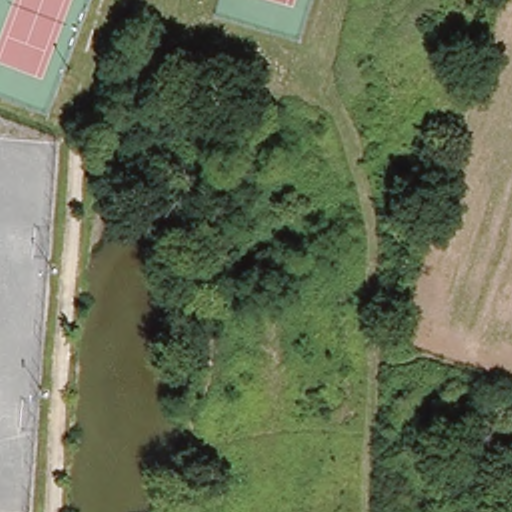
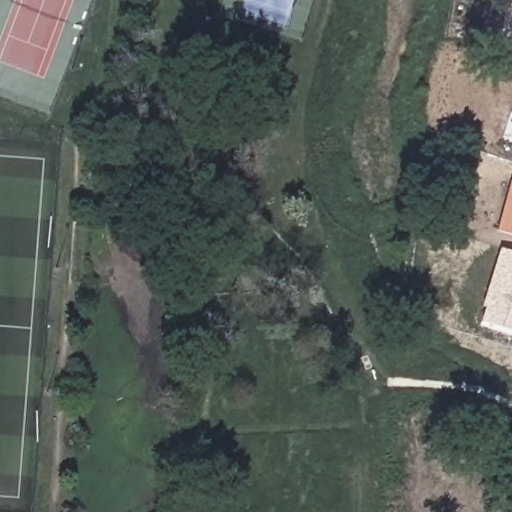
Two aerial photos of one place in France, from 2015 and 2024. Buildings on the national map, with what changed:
new [(512,181),(512,235),(494,230),(509,180),(512,181)]
new [(479,322),(483,308),(479,307),(499,247),(512,252),(512,332),(479,322)]

